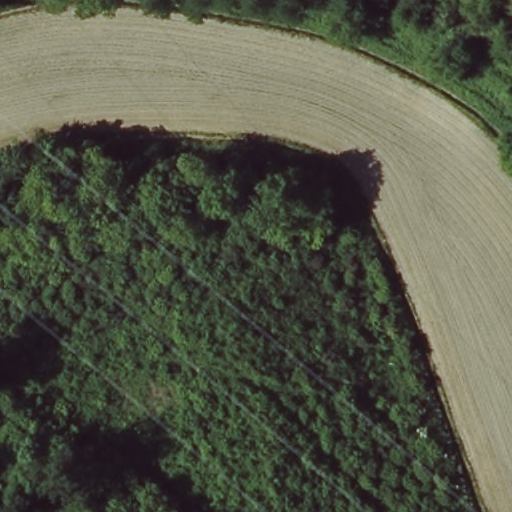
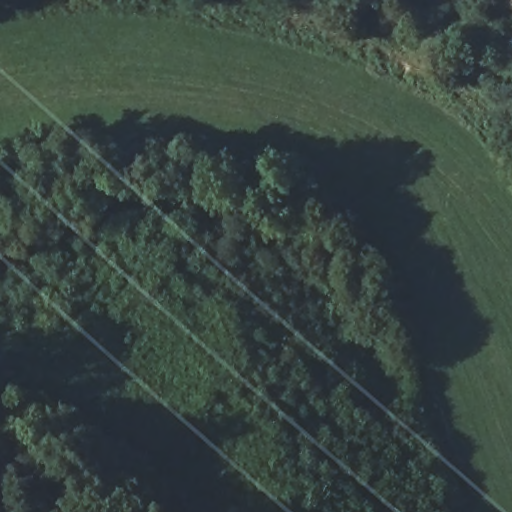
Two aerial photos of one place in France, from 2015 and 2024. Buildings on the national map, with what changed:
[]

